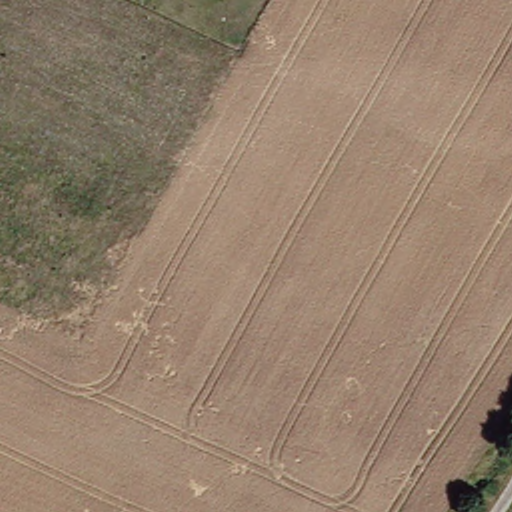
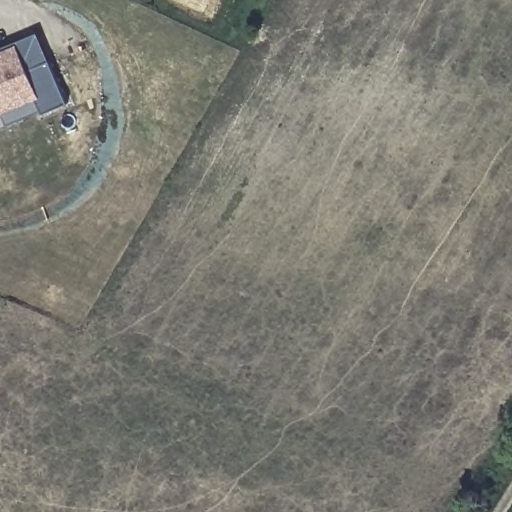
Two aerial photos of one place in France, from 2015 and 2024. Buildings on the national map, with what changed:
new [(63,104),(39,112),(5,124),(2,114),(0,115),(0,114),(0,49),(35,36),(63,104)]

